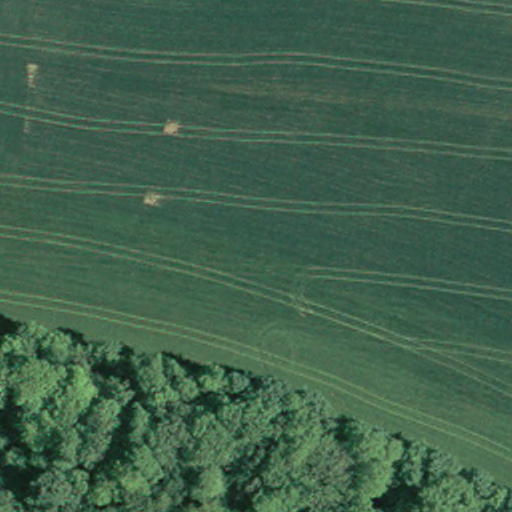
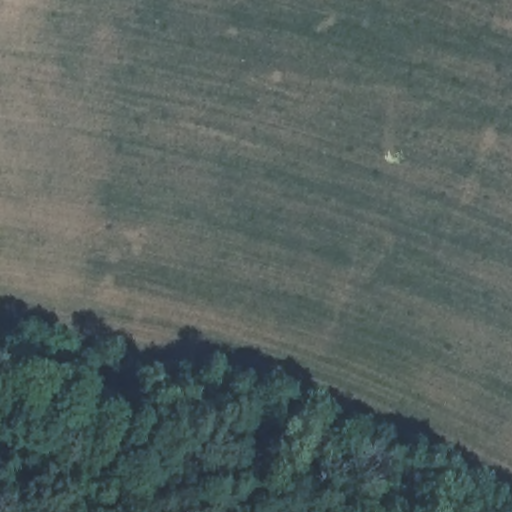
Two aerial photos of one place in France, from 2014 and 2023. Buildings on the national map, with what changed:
unchanged [(2,438),(0,447),(0,438),(2,438)]

